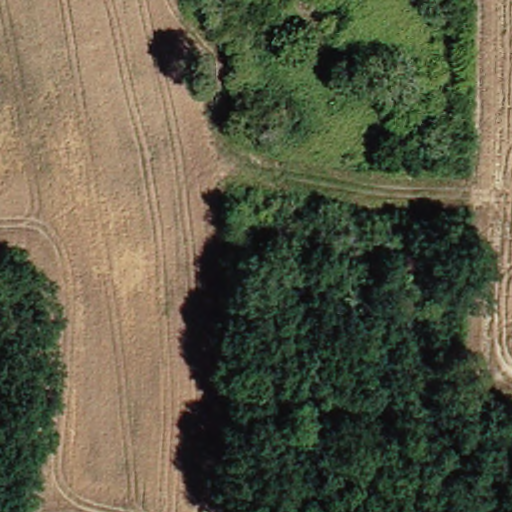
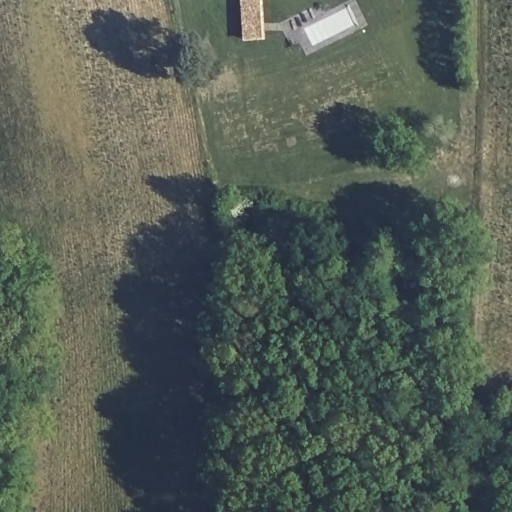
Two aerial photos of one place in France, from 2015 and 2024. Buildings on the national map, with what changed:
new [(245,41),(241,0),(263,0),(266,40),(245,41)]
unchanged [(258,0),(295,0),(259,1),(258,0)]

